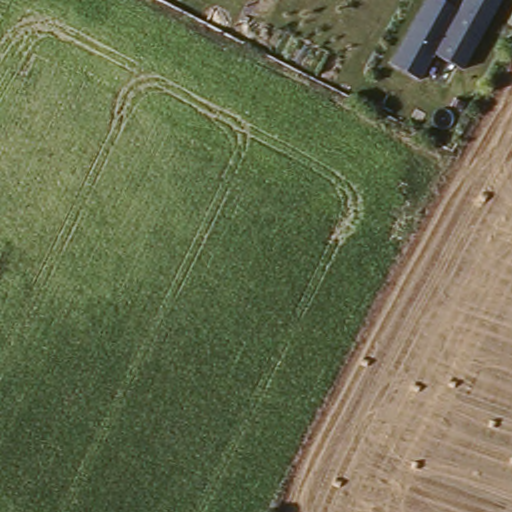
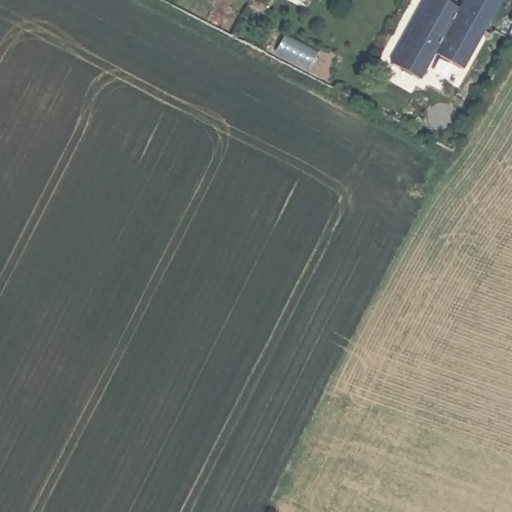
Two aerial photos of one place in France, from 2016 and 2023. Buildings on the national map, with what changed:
unchanged [(427,0),(435,0),(457,12),(464,0),(503,0),(465,69),(434,55),(420,81),(391,67),(427,0)]

